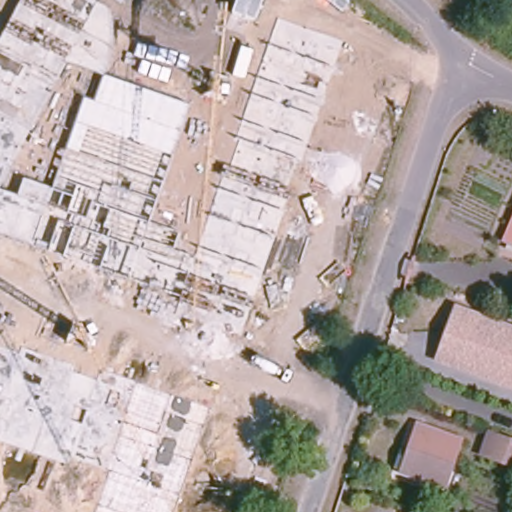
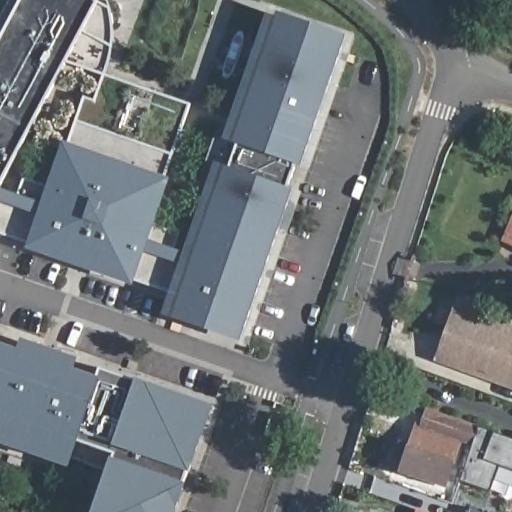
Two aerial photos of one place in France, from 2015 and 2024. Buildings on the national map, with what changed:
new [(97,0),(99,1),(110,6),(114,24),(115,39),(112,58),(106,74),(190,103),(165,176),(171,178),(155,223),(182,232),(179,243),(177,249),(194,257),(224,165),(231,168),(239,144),(232,140),(277,12),(348,37),(303,166),(297,164),(289,188),(295,190),(240,341),(171,317),(179,294),(135,278),(132,284),(26,247),(28,240),(0,231),(0,188),(20,194),(25,177),(50,184),(64,141),(70,144),(84,96),(95,99),(103,75),(67,61),(0,186),(0,41),(22,0),(97,0)]
unchanged [(512,228),(512,242),(507,240),(512,228)]
unchanged [(450,333),(459,309),(512,328),(512,387),(457,367),(440,360),(450,333)]
new [(176,512),(92,512),(109,466),(73,454),(69,467),(0,442),(0,343),(19,349),(22,339),(77,358),(75,369),(98,377),(101,369),(137,382),(138,375),(214,405),(190,471),(186,483),(176,512)]
unchanged [(462,439),(445,488),(402,473),(395,471),(405,441),(411,444),(417,424),(462,439)]
new [(512,438),(512,471),(500,466),(491,492),(460,481),(480,427),(512,438)]
demolished [(481,455),(490,430),(512,438),(512,467),(481,455)]
new [(472,509),(479,512),(470,512),(472,509)]

